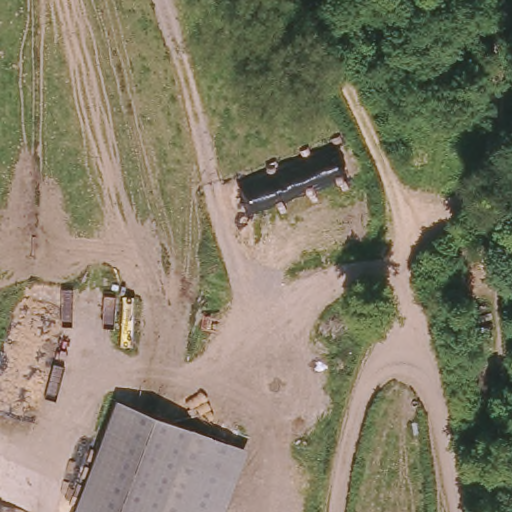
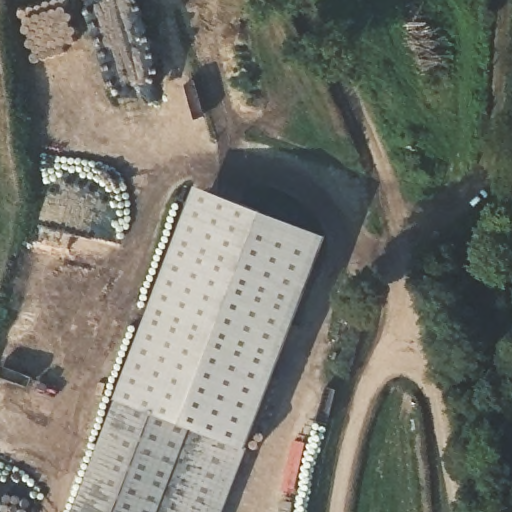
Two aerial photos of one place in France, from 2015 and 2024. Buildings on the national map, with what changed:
demolished [(415,48),(415,88),(444,89),(443,122),(398,120),(403,48),(415,48)]
new [(327,238),(247,448),(116,397),(195,186),(327,238)]
unchanged [(73,512),(116,397),(247,448),(223,512),(73,512)]

